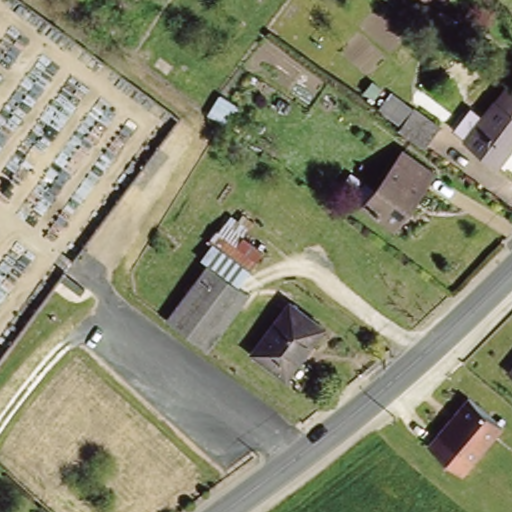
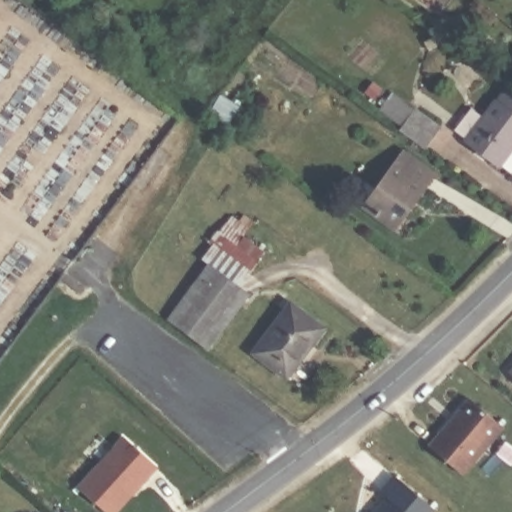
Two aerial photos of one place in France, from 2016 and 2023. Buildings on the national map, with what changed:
unchanged [(503,158),(456,127),(467,110),(482,119),(495,100),(500,104),(512,86),(512,145),(503,158)]
unchanged [(407,104),(433,122),(419,142),(394,124),(407,104)]
unchanged [(397,222),(369,201),(407,148),(435,169),(397,222)]
unchanged [(208,244),(217,235),(220,231),(230,222),(242,231),(235,242),(255,256),(253,260),(246,270),(208,244)]
unchanged [(174,318),(217,263),(253,291),(210,346),(174,318)]
unchanged [(315,317),(292,348),(297,352),(288,365),(255,340),(288,297),(315,317)]
unchanged [(472,460),(439,433),(469,397),(501,423),(472,460)]
new [(120,512),(109,512),(82,488),(127,438),(160,468),(120,512)]
new [(438,512),(374,512),(387,497),(381,491),(395,475),(438,512)]

